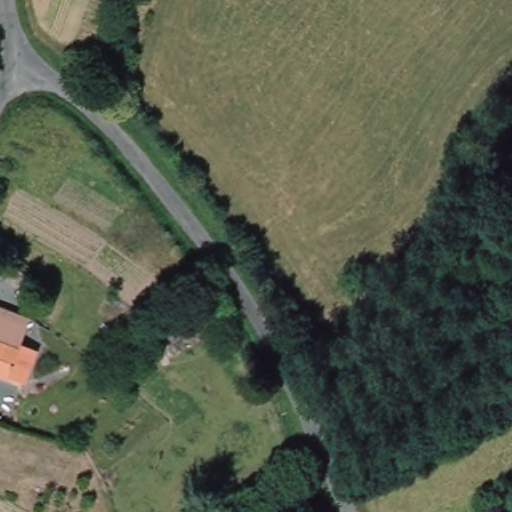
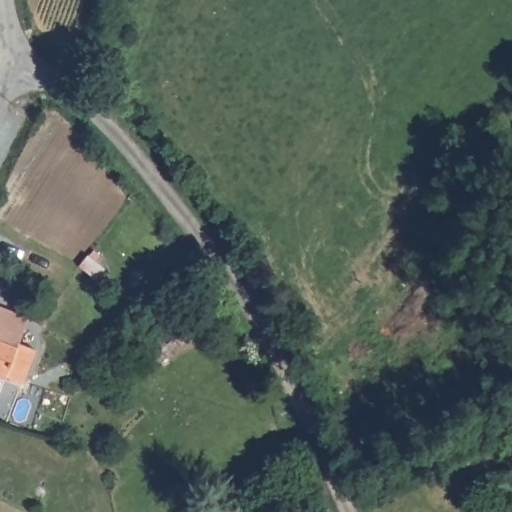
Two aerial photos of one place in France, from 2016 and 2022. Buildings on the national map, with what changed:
unchanged [(20,343),(11,342),(7,340),(0,338),(0,308),(27,318),(20,343)]
unchanged [(11,342),(20,343),(35,348),(23,383),(16,380),(0,375),(0,338),(7,340),(11,342)]

